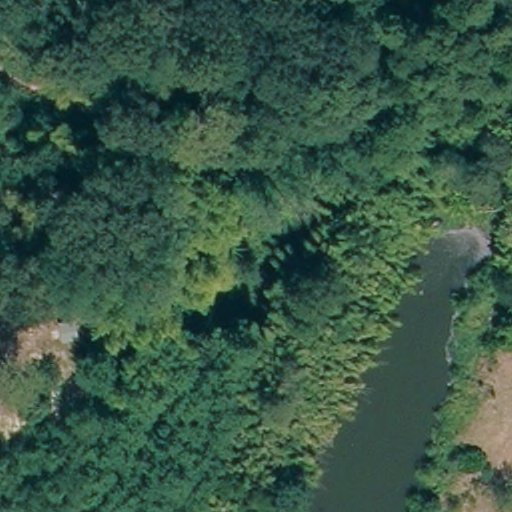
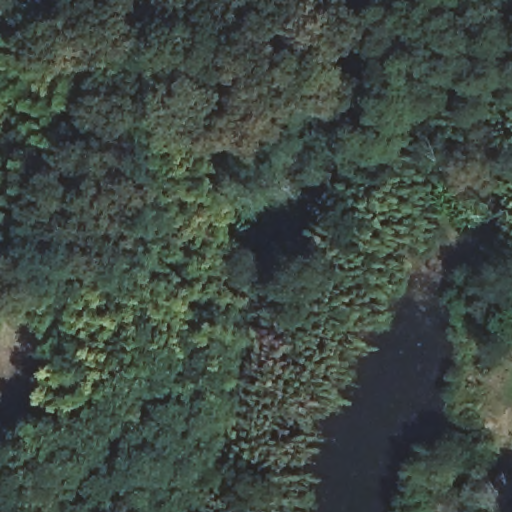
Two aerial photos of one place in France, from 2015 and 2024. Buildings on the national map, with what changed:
[]

